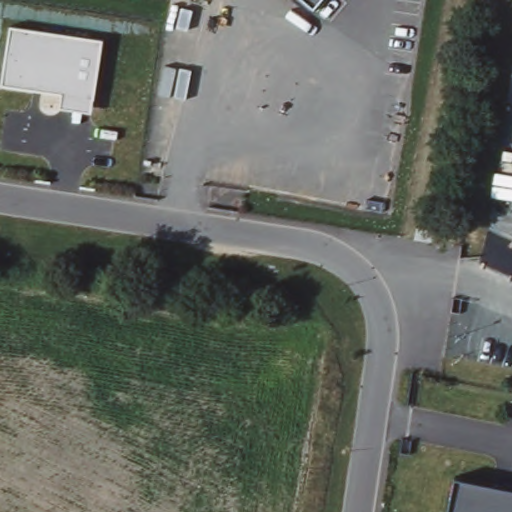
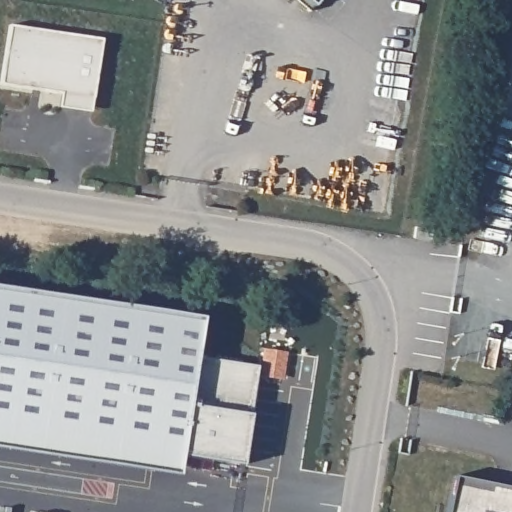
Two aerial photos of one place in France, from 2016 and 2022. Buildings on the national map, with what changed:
unchanged [(306,0),(319,0),(314,6),(306,0)]
unchanged [(103,34),(91,108),(57,104),(59,90),(0,83),(0,80),(9,20),(103,34)]
new [(186,454),(0,426),(0,284),(206,315),(200,355),(262,364),(247,463),(217,458),(215,470),(195,466),(197,455),(186,454)]
new [(186,454),(183,473),(0,445),(0,426),(186,454)]
unchanged [(512,488),(512,512),(446,512),(454,475),(512,488)]

